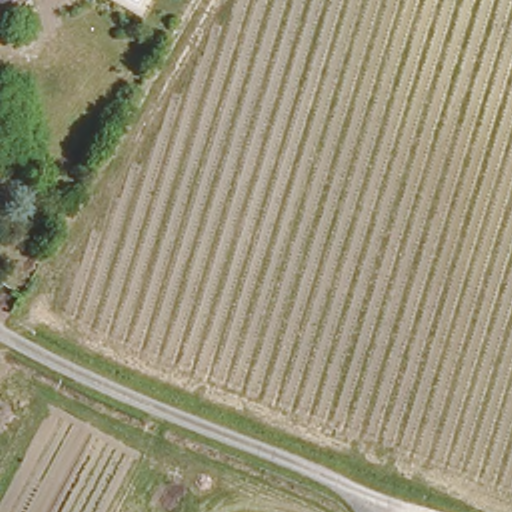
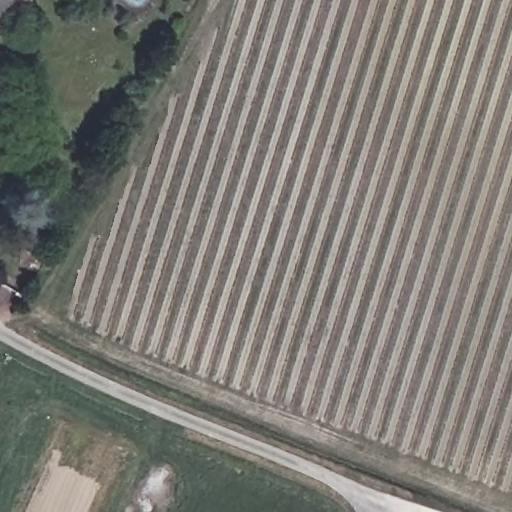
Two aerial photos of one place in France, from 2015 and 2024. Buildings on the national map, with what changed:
unchanged [(0,0),(25,0),(19,10),(11,5),(0,22),(0,0)]

